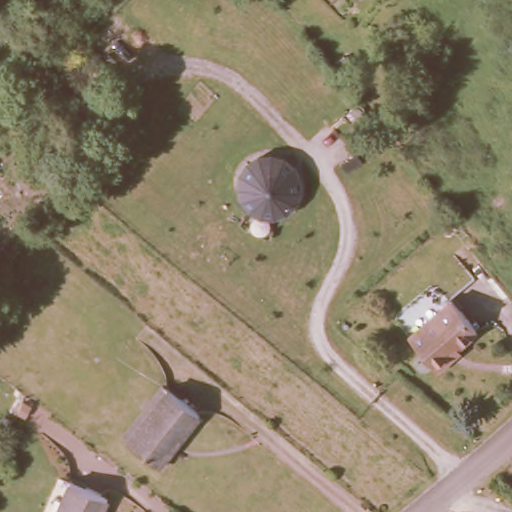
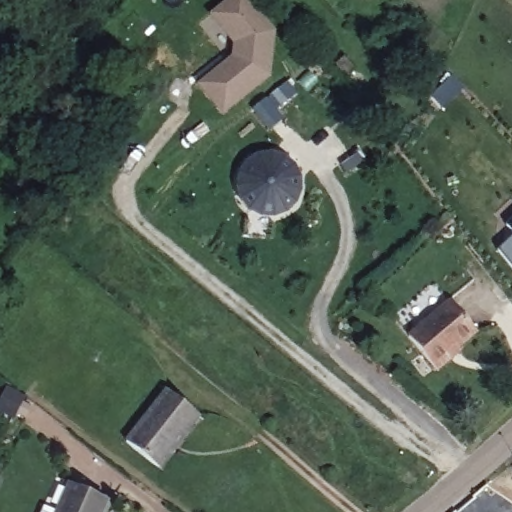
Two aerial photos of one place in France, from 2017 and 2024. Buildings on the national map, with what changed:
new [(231,44),(210,14),(228,0),(249,0),(275,31),(270,77),(222,116),(196,84),(231,56),(231,44)]
unchanged [(235,182),(238,169),(252,153),(268,150),(287,153),(300,163),(306,182),(300,202),(292,212),(274,219),(250,218),(237,198),(235,182)]
new [(506,223),(512,218),(512,231),(506,223)]
new [(496,248),(512,235),(512,268),(496,248)]
unchanged [(452,358),(437,370),(411,337),(453,303),(477,331),(458,348),(460,351),(452,358)]
unchanged [(197,414),(157,466),(125,441),(165,388),(197,414)]
unchanged [(106,497),(100,512),(57,512),(69,482),(106,497)]

